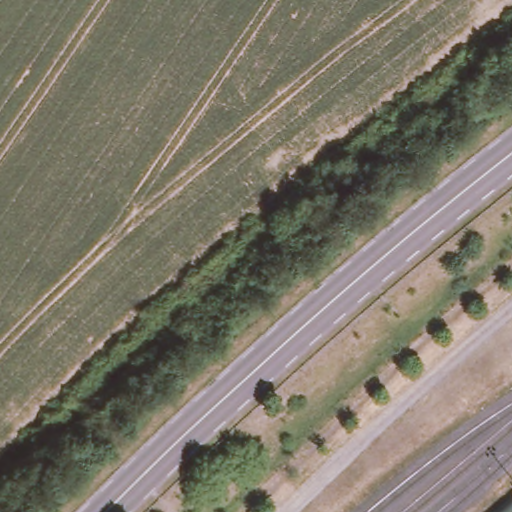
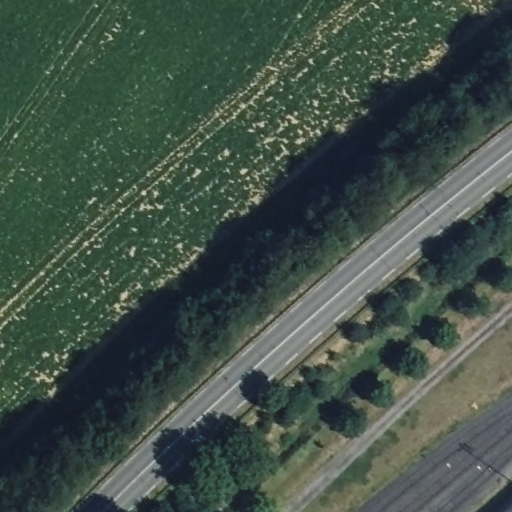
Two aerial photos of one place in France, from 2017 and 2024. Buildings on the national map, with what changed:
unchanged [(505,512),(512,506),(512,512),(505,512)]

